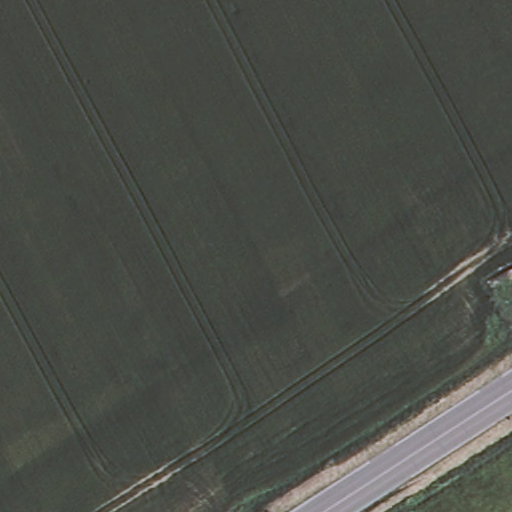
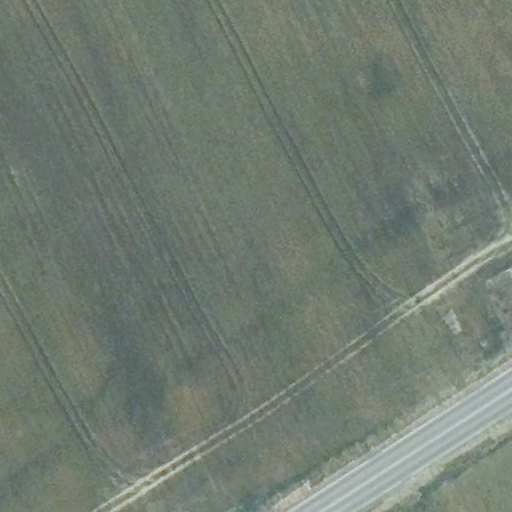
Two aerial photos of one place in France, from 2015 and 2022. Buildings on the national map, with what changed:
unchanged [(512,268),(512,331),(484,282),(512,268)]

